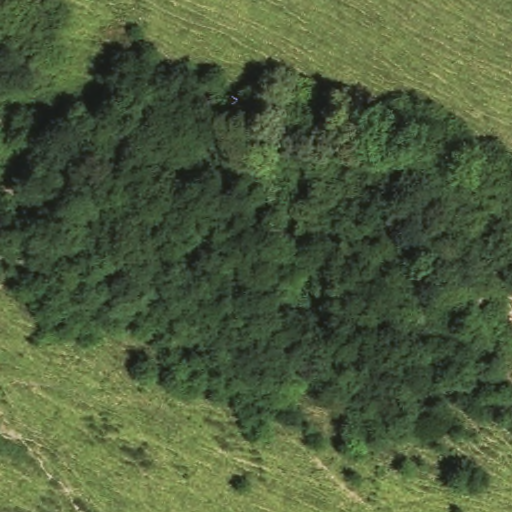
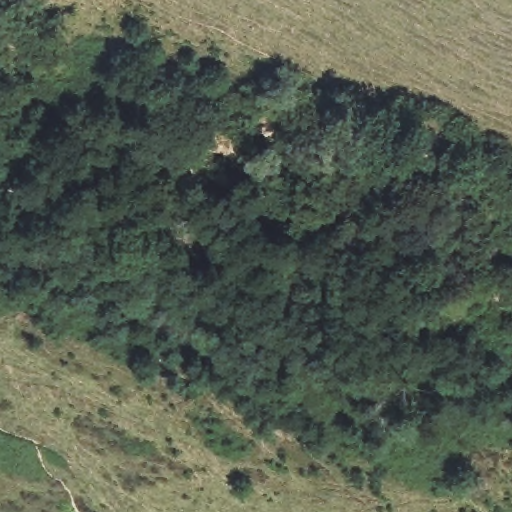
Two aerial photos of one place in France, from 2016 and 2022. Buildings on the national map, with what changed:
[]

